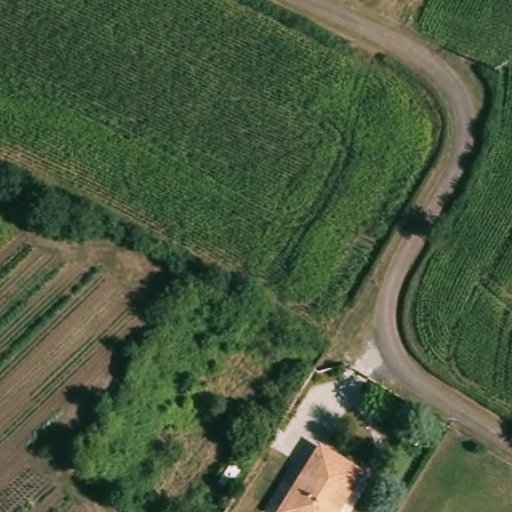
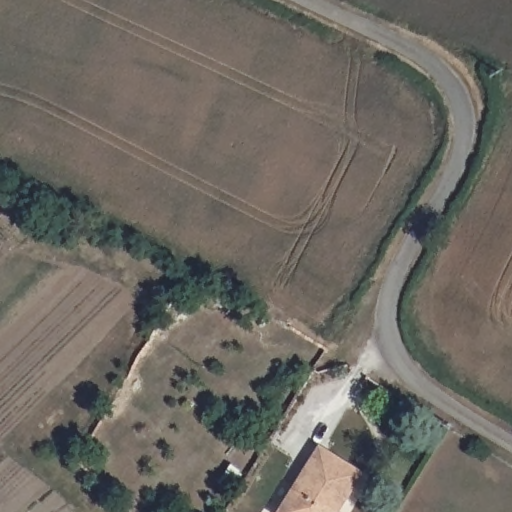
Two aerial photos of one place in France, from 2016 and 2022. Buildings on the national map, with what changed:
unchanged [(296,483),(320,445),(360,471),(335,510),(296,483)]
unchanged [(278,512),(296,483),(335,510),(335,512),(278,512)]

